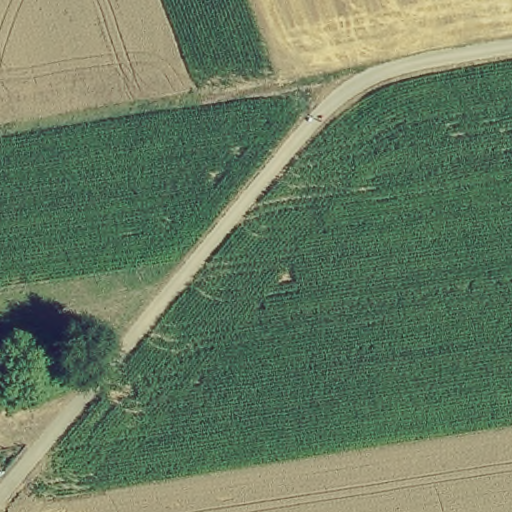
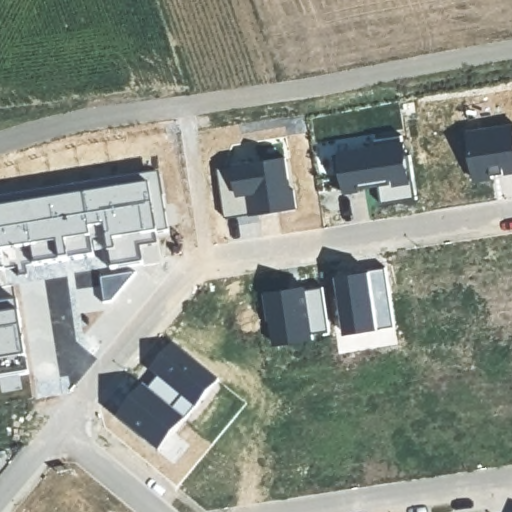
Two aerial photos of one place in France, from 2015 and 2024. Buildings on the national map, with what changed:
new [(512,123),(512,173),(472,181),(464,129),(512,123)]
new [(361,137),(362,142),(405,134),(417,200),(381,205),(379,186),(342,192),(333,142),(361,137)]
new [(287,156),(296,208),(224,217),(216,167),(287,156)]
new [(114,301),(110,303),(102,305),(97,272),(94,266),(87,267),(86,262),(28,268),(0,273),(0,197),(16,194),(159,172),(170,234),(158,236),(162,262),(143,266),(136,267),(136,272),(134,275),(114,301)]
new [(386,267),(396,327),(345,333),(336,276),(386,267)]
new [(306,287),(324,285),(331,332),(314,335),(314,338),(271,345),(261,291),(306,285),(306,287)]
new [(32,376),(20,378),(0,381),(0,301),(18,298),(32,376)]
new [(147,389),(156,377),(148,370),(170,343),(217,381),(195,407),(184,420),(159,451),(117,416),(141,385),(147,389)]

